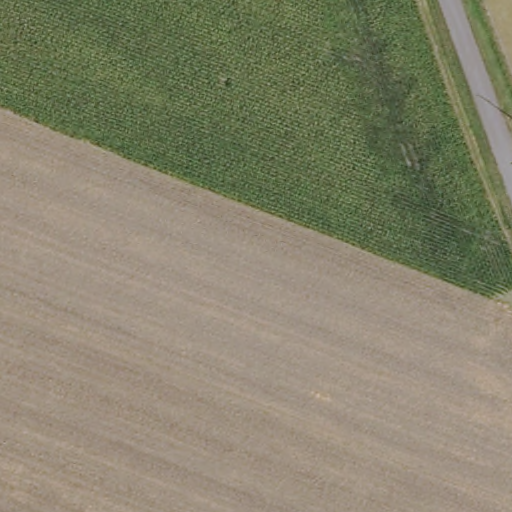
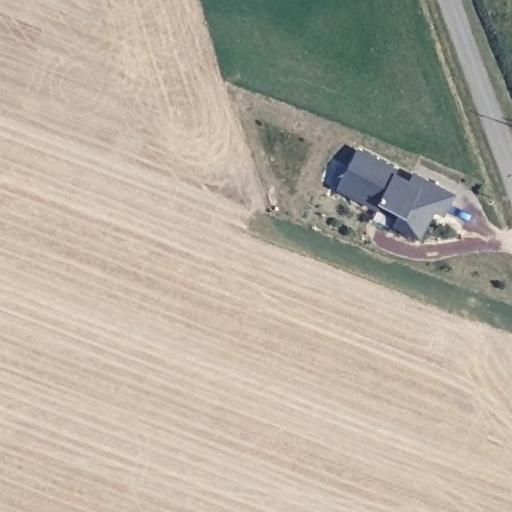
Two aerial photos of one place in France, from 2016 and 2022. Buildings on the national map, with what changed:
new [(400,215),(379,203),(376,208),(339,188),(359,149),(396,168),(394,173),(408,181),(413,172),(455,195),(443,216),(434,212),(420,240),(394,227),(400,215)]

